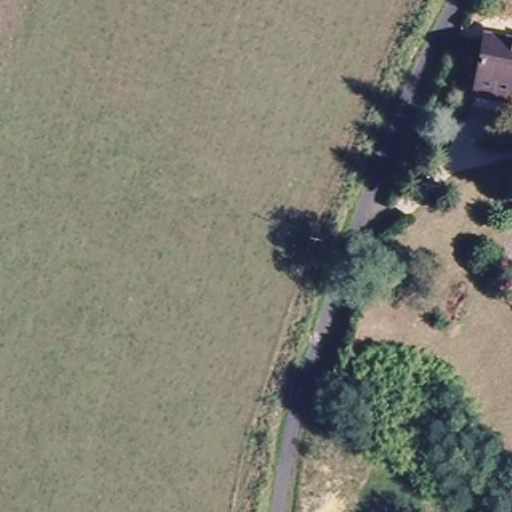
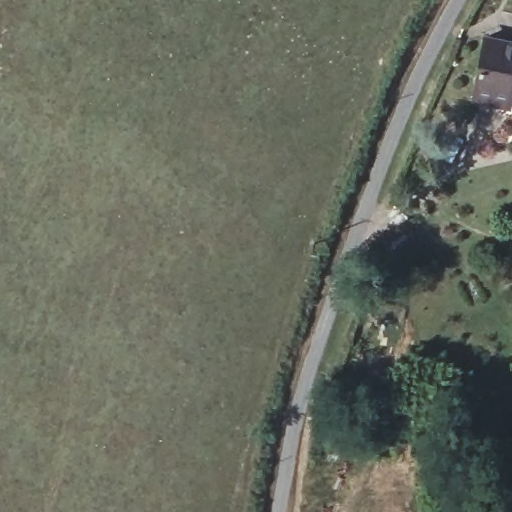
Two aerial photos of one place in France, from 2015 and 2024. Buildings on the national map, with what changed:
unchanged [(507,87),(503,95),(472,88),(487,32),(512,38),(512,88),(507,87)]

